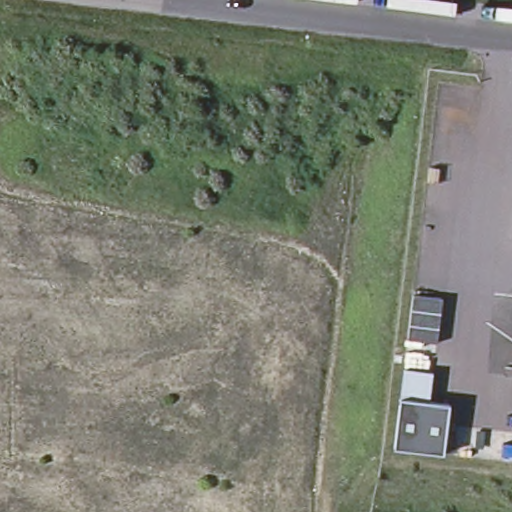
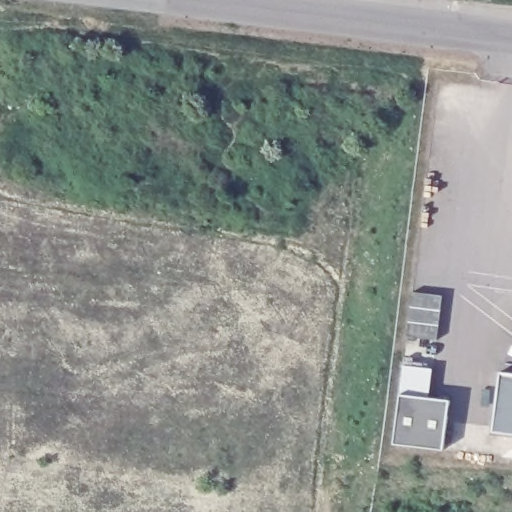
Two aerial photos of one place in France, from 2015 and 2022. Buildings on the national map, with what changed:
unchanged [(442,294),(436,338),(407,335),(412,290),(442,294)]
unchanged [(427,367),(424,396),(444,398),(439,448),(388,442),(397,363),(427,367)]
new [(494,431),(500,371),(512,372),(512,433),(494,431)]

